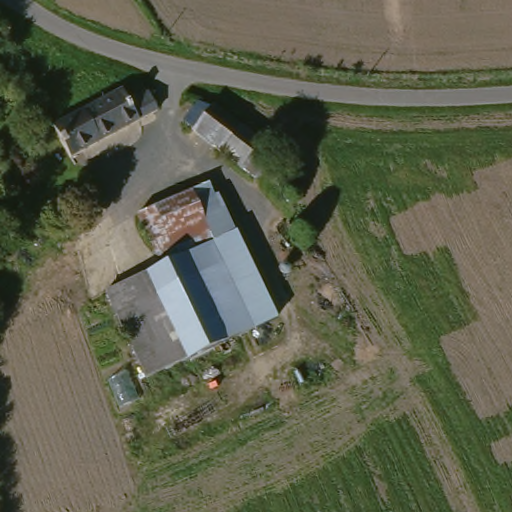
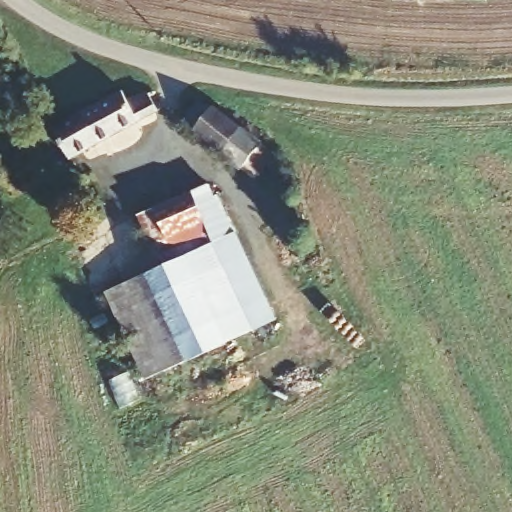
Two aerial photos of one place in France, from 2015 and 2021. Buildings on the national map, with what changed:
unchanged [(120,88),(124,92),(158,87),(165,112),(141,119),(71,157),(50,124),(120,88)]
unchanged [(252,164),(227,150),(225,146),(190,124),(201,107),(211,112),(216,110),(268,142),(252,164)]
unchanged [(147,382),(104,293),(168,263),(140,215),(213,184),(278,322),(147,382)]

